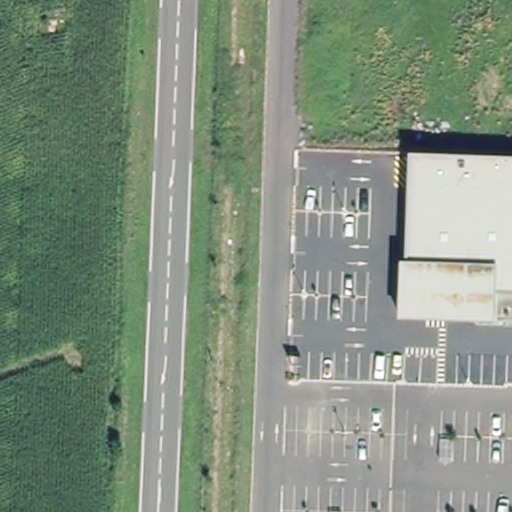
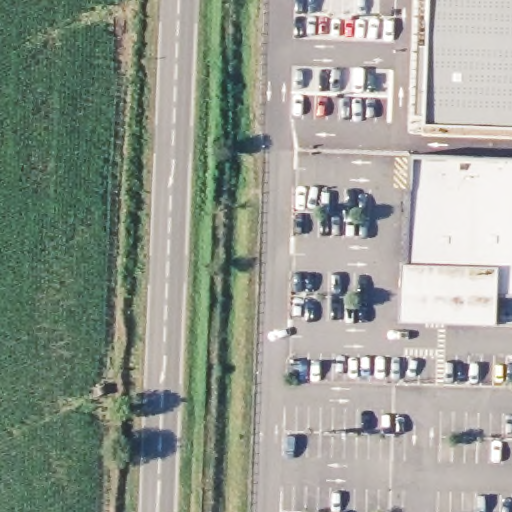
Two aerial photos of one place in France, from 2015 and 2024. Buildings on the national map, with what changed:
new [(507,127),(422,125),(426,0),(512,0),(512,127),(507,127)]
unchanged [(495,321),(497,292),(436,290),(435,296),(405,295),(404,295),(406,263),(410,153),(512,157),(512,321),(495,321)]
new [(495,321),(401,317),(400,317),(402,263),(406,263),(404,295),(405,295),(435,296),(436,290),(497,292),(495,321)]

